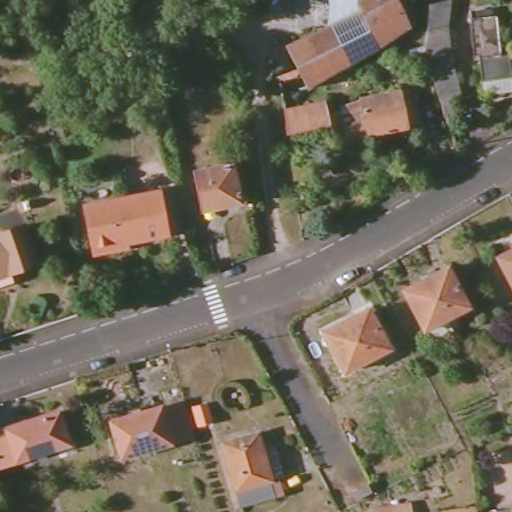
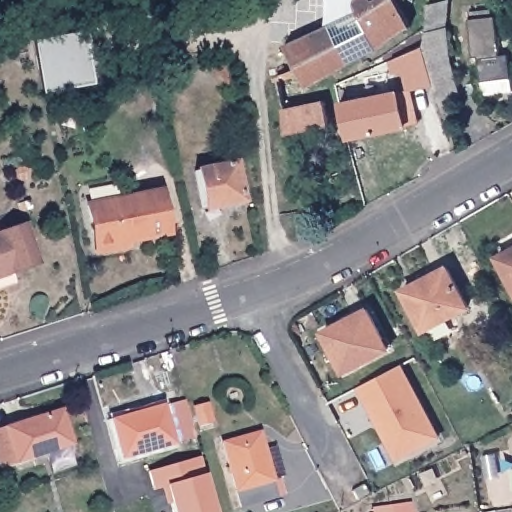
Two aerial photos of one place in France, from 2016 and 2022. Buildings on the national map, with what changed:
unchanged [(337,4),(335,0),(405,0),(415,25),(312,86),(303,69),(291,44),(337,23),(337,4)]
unchanged [(463,96),(455,98),(461,118),(452,120),(430,48),(432,23),(433,4),(455,0),(452,25),(457,64),(463,96)]
unchanged [(493,53),(494,56),(508,54),(512,81),(512,90),(485,94),(482,58),(486,57),(485,54),(476,55),(471,11),(492,9),(493,16),(497,16),(500,52),(493,53)]
new [(84,33),(93,85),(43,95),(33,42),(84,33)]
unchanged [(338,140),(335,124),(295,133),(289,109),(330,100),(334,114),(347,111),(345,104),(403,90),(411,124),(338,140)]
unchanged [(202,209),(193,172),(234,163),(242,200),(202,209)]
unchanged [(137,240),(137,235),(127,237),(127,239),(92,244),(85,205),(160,190),(168,234),(137,240)]
unchanged [(37,263),(0,275),(0,232),(23,224),(37,263)]
unchanged [(500,258),(512,251),(512,280),(500,258)]
unchanged [(405,290),(450,267),(470,305),(426,329),(405,290)]
unchanged [(345,371),(325,331),(369,308),(389,348),(345,371)]
new [(358,388),(403,364),(443,436),(395,461),(358,388)]
unchanged [(112,419),(161,406),(184,400),(195,437),(172,443),(122,456),(112,419)]
unchanged [(2,452),(0,442),(0,432),(69,411),(79,442),(27,459),(6,465),(2,452)]
demolished [(444,439),(439,429),(447,424),(452,434),(444,439)]
unchanged [(282,475),(272,478),(272,479),(278,478),(282,494),(240,506),(222,443),(260,432),(264,448),(275,445),(282,475)]
new [(212,512),(169,512),(163,491),(148,492),(143,473),(199,455),(214,511),(212,512)]
unchanged [(372,492),(357,499),(352,491),(367,483),(372,492)]
unchanged [(411,505),(412,512),(390,512),(390,508),(411,505)]
unchanged [(372,509),(390,508),(390,512),(373,512),(372,509)]

